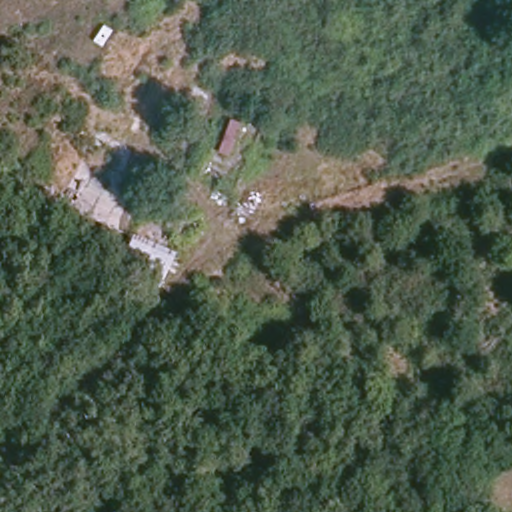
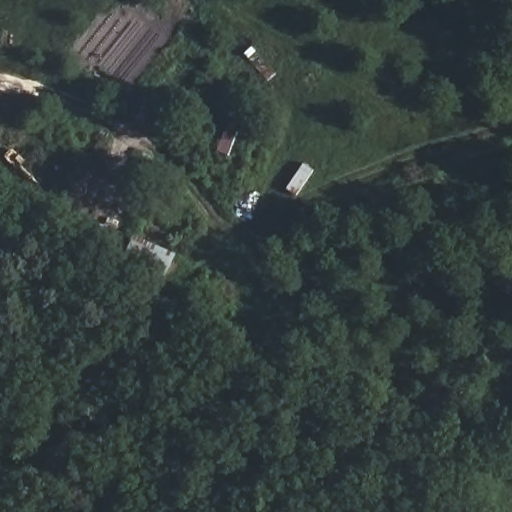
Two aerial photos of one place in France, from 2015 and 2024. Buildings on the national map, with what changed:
unchanged [(230,116),(241,121),(229,153),(219,150),(230,116)]

